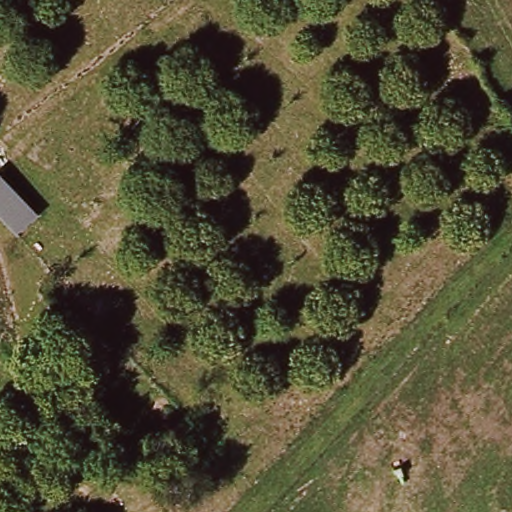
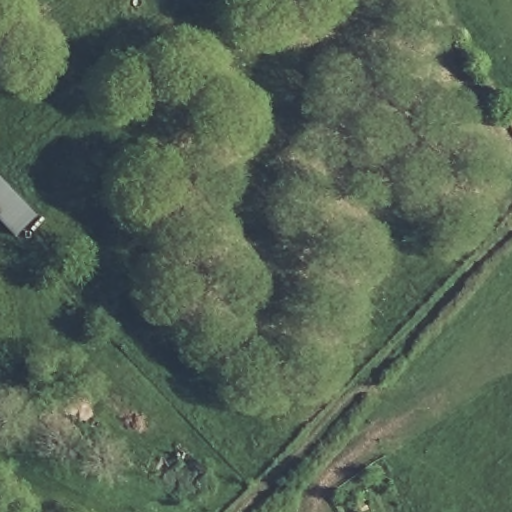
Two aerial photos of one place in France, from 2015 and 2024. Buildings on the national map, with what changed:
unchanged [(38,216),(16,235),(0,218),(0,177),(38,216)]

